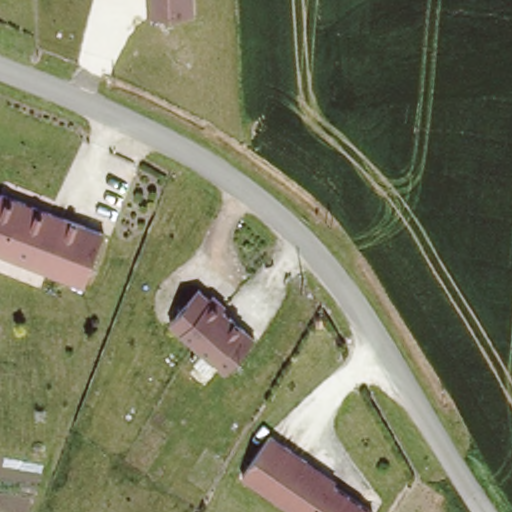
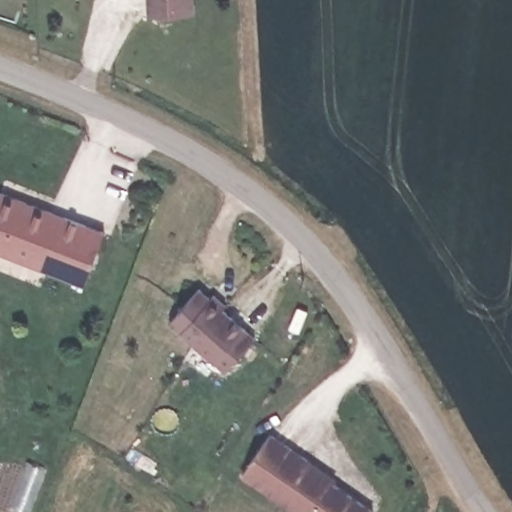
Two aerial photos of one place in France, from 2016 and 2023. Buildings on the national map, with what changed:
unchanged [(193,0),(193,11),(148,13),(148,0),(193,0)]
unchanged [(0,195),(3,186),(70,211),(51,264),(0,245),(0,195)]
unchanged [(108,225),(88,278),(51,264),(70,211),(108,225)]
unchanged [(212,299),(215,295),(228,306),(225,309),(257,338),(228,372),(172,323),(201,289),(212,299)]
unchanged [(336,482),(333,486),(369,512),(297,512),(245,475),(271,435),(308,462),(336,482)]

